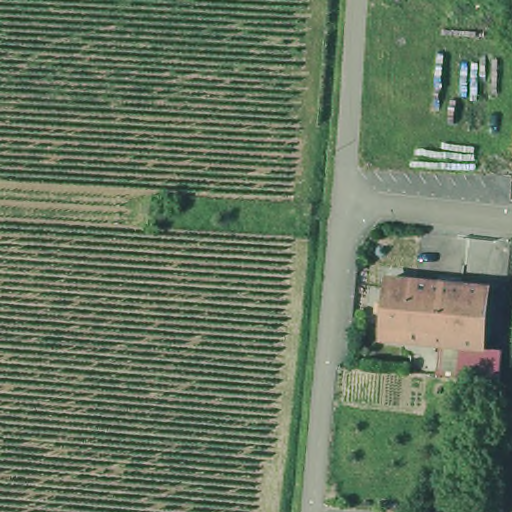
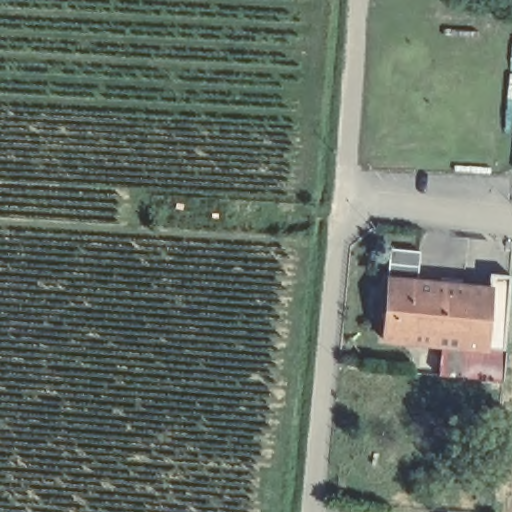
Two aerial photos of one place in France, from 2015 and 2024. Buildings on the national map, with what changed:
unchanged [(491,283),(484,344),(436,340),(384,333),(391,272),(491,283)]
unchanged [(484,344),(502,347),(499,383),(434,377),(436,340),(484,344)]

